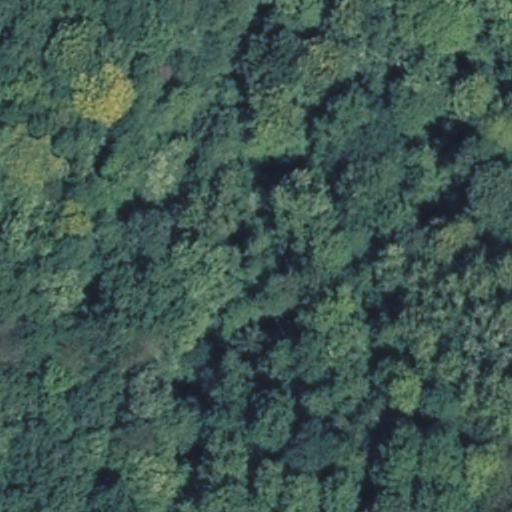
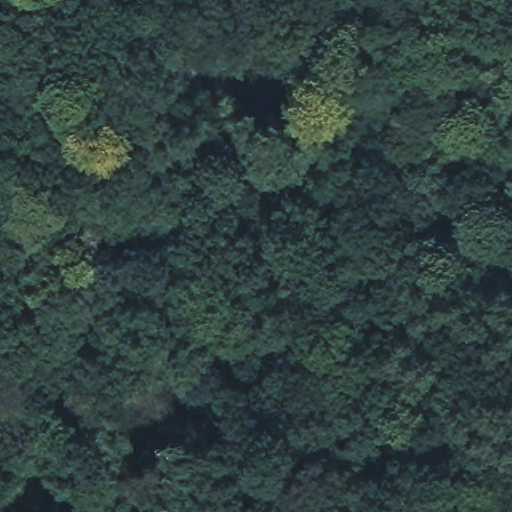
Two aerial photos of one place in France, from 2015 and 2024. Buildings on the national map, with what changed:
[]

